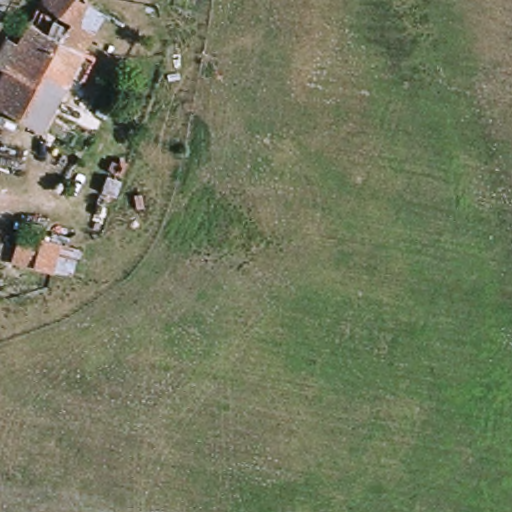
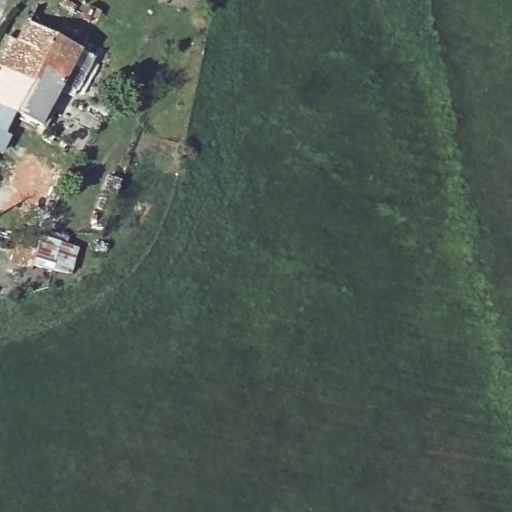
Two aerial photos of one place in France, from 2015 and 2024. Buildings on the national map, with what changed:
unchanged [(33,0),(78,0),(119,22),(104,49),(90,41),(42,126),(0,103),(0,61),(4,54),(14,55),(32,20),(25,16),(33,0)]
unchanged [(61,244),(57,258),(17,247),(22,231),(61,244)]

